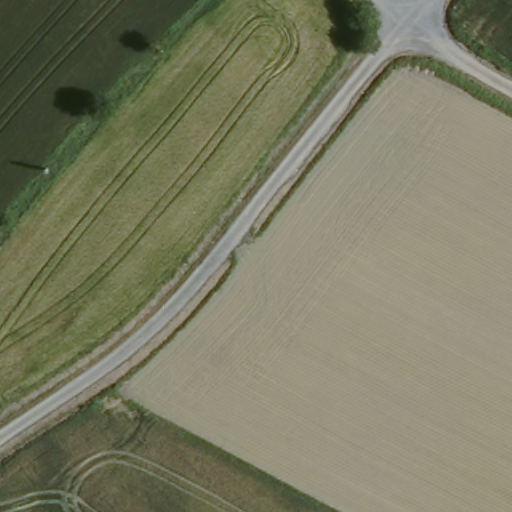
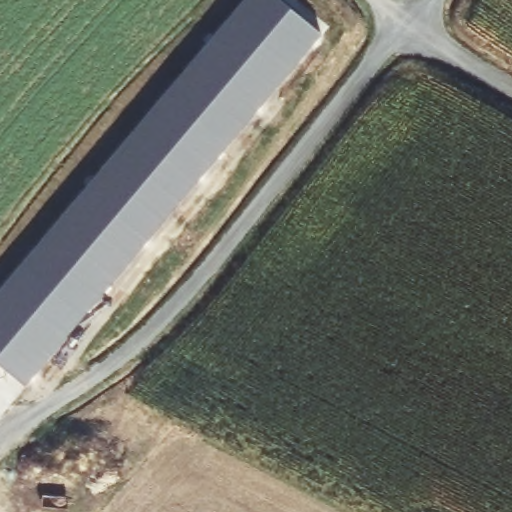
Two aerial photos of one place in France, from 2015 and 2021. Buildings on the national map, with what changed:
new [(241,0),(283,0),(317,28),(21,379),(0,361),(0,286),(241,0)]

